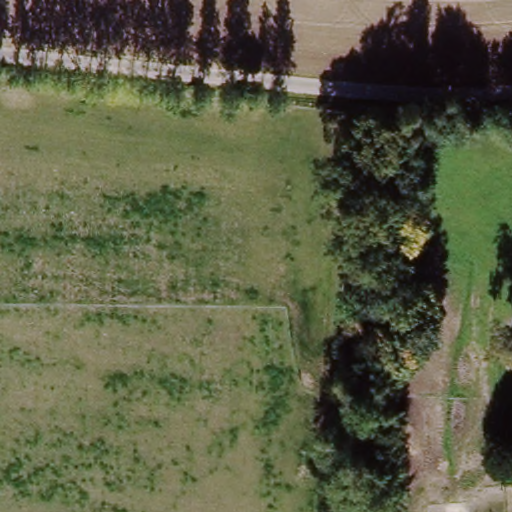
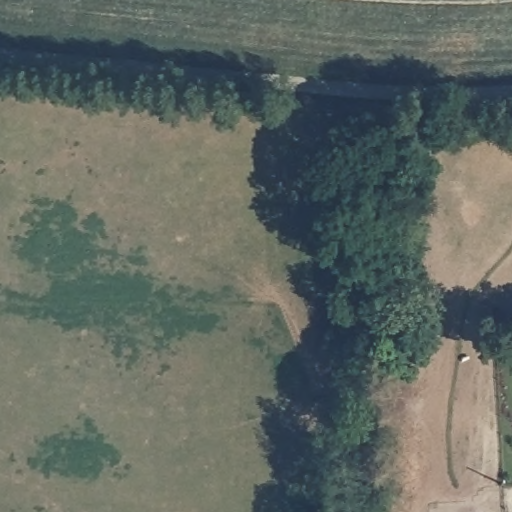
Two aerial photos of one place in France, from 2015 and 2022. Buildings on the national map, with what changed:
[]

